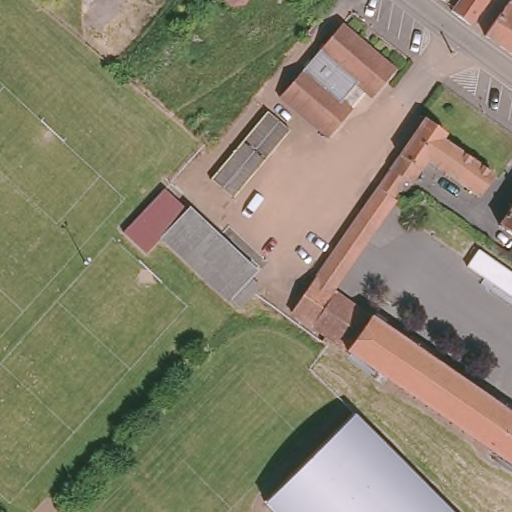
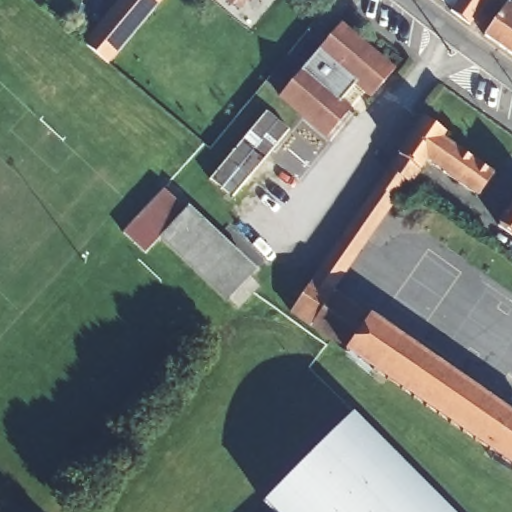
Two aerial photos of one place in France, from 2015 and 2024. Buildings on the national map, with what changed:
new [(83,43),(119,0),(161,0),(107,64),(83,43)]
unchanged [(231,6),(223,0),(249,0),(242,8),(231,6)]
unchanged [(457,9),(463,0),(491,0),(471,26),(454,13),(457,9)]
unchanged [(486,33),(507,1),(512,4),(512,51),(486,33)]
unchanged [(397,67),(376,94),(368,88),(352,106),(354,108),(332,134),(284,91),(344,21),(397,67)]
unchanged [(291,134),(231,204),(206,183),(266,111),(291,134)]
unchanged [(474,193),(446,174),(421,158),(405,180),(397,175),(387,190),(386,193),(370,182),(404,134),(416,114),(440,130),(437,136),(461,153),(488,171),(474,193)]
unchanged [(491,449),(452,422),(392,381),(307,322),(287,308),(370,182),(386,193),(387,190),(391,193),(327,289),(420,352),(512,415),(512,463),(491,449)]
unchanged [(233,296),(232,297),(164,235),(149,252),(136,239),(127,231),(167,187),(175,194),(257,268),(254,273),(264,282),(262,284),(242,304),(233,296)]
unchanged [(502,227),(512,212),(512,233),(502,227)]
unchanged [(267,505),(354,415),(453,512),(274,512),(267,505)]

